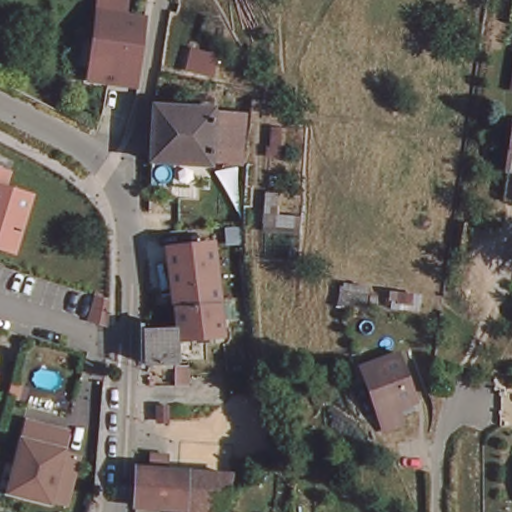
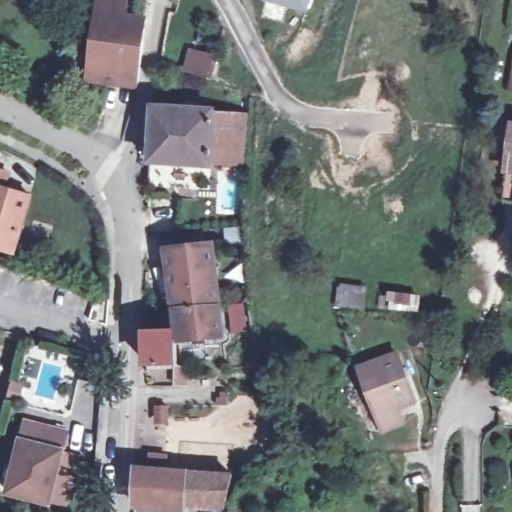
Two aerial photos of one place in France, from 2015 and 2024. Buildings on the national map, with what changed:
new [(307,13),(267,0),(311,0),(307,13)]
unchanged [(120,86),(92,81),(104,25),(105,17),(152,27),(151,32),(140,85),(139,90),(120,86)]
unchanged [(217,62),(213,79),(189,72),(192,55),(217,62)]
unchanged [(147,101),(148,101),(208,105),(205,160),(145,155),(147,101)]
unchanged [(205,160),(208,105),(245,113),(242,205),(208,204),(210,165),(205,160)]
unchanged [(503,204),(508,172),(512,146),(512,205),(503,204)]
unchanged [(7,186),(34,195),(14,256),(0,252),(0,168),(12,172),(7,186)]
unchanged [(207,245),(212,304),(210,304),(170,306),(163,249),(207,245)]
unchanged [(109,307),(107,316),(106,332),(95,329),(88,326),(95,303),(109,307)]
unchanged [(210,304),(212,304),(216,336),(174,339),(174,334),(173,328),(170,306),(210,304)]
unchanged [(145,331),(170,332),(170,364),(144,363),(145,331)]
unchanged [(385,435),(380,419),(362,369),(397,357),(414,407),(397,413),(402,428),(385,435)]
unchanged [(174,368),(184,368),(184,379),(184,387),(170,387),(171,368),(174,368)]
unchanged [(160,429),(160,423),(160,412),(160,411),(173,411),(174,412),(174,423),(174,429),(160,429)]
unchanged [(67,436),(50,507),(9,497),(26,427),(67,436)]
unchanged [(163,463),(162,471),(162,472),(145,472),(145,470),(145,462),(163,463)]
unchanged [(220,512),(178,512),(130,509),(132,475),(222,479),(223,507),(220,512)]

